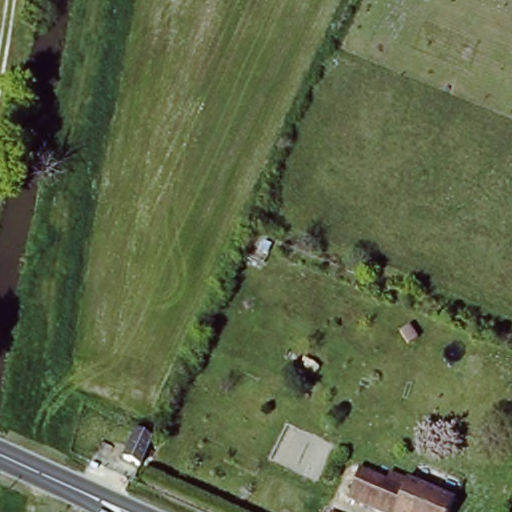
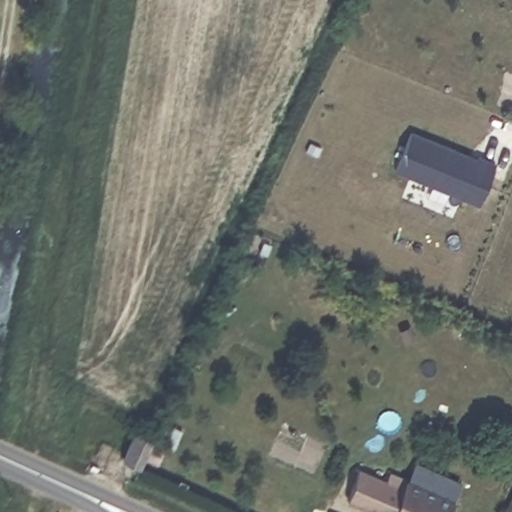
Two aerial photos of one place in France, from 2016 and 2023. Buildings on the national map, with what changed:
new [(482,206),(397,171),(412,132),(479,160),(480,157),(498,164),(482,206)]
new [(161,436),(146,467),(128,460),(141,427),(161,436)]
demolished [(147,437),(133,468),(114,461),(128,428),(147,437)]
unchanged [(452,512),(362,512),(344,504),(363,465),(454,507),(452,512)]

